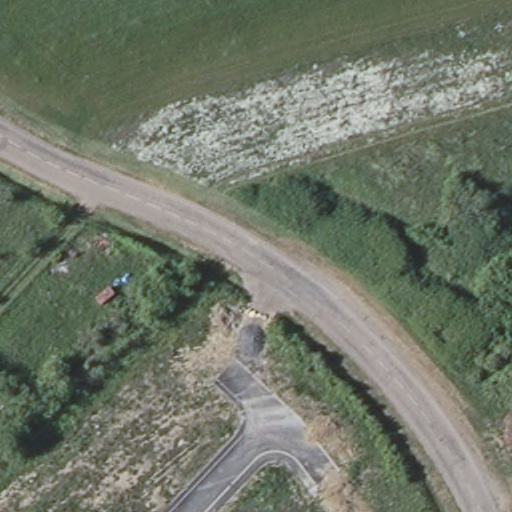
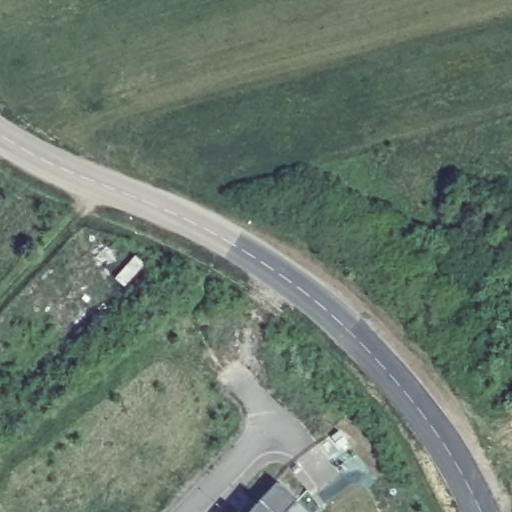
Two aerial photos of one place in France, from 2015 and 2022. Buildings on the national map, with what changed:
new [(295,499),(284,512),(249,512),(261,499),(277,480),(295,499)]

